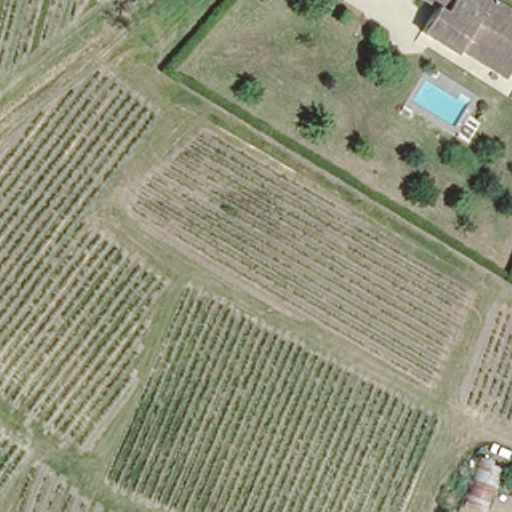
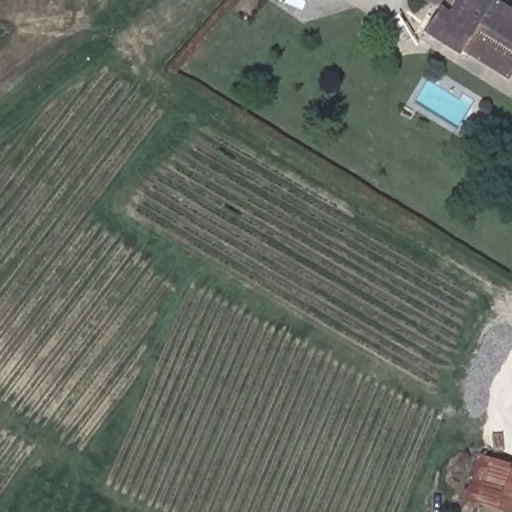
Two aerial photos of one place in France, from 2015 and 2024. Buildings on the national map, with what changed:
unchanged [(503,75),(463,47),(458,55),(425,32),(439,10),(424,0),(499,0),(512,9),(512,61),(503,75)]
new [(512,468),(512,511),(512,512),(502,512),(464,499),(480,456),(512,468)]

